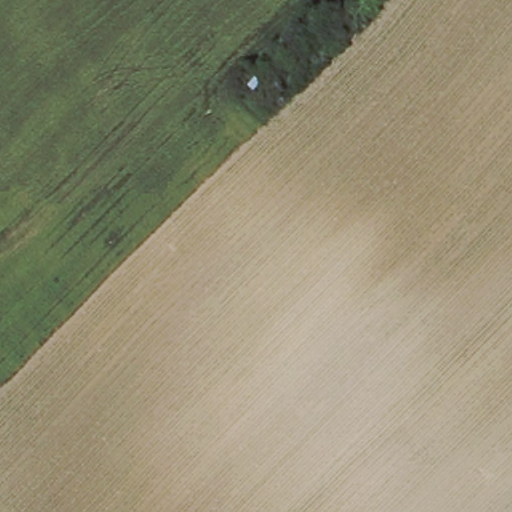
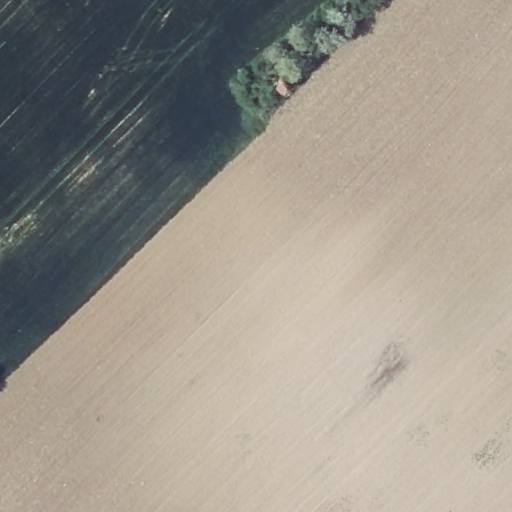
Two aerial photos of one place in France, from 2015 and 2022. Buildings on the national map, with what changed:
unchanged [(370,0),(372,2),(360,15),(348,4),(351,0),(370,0)]
unchanged [(272,60),(293,86),(280,100),(272,94),(276,90),(261,70),(272,60)]

